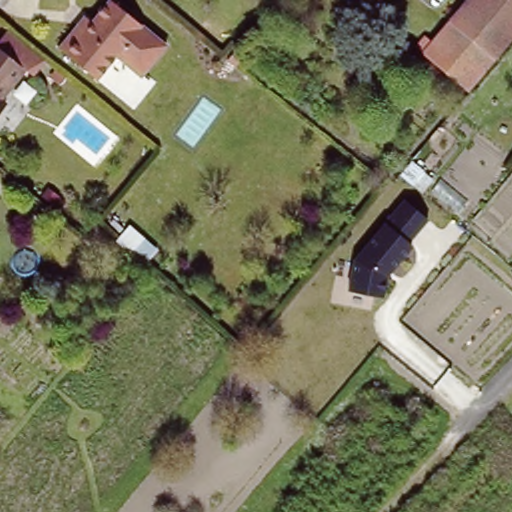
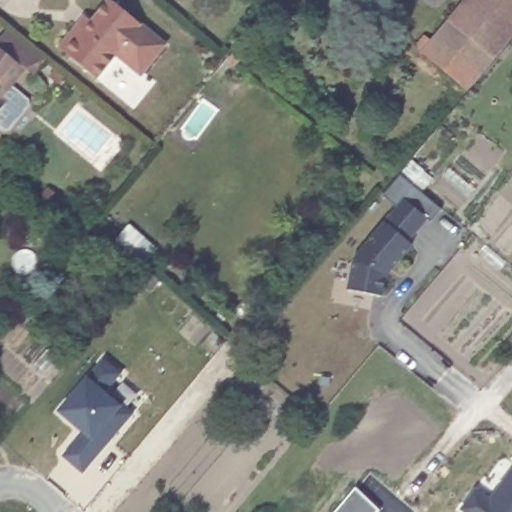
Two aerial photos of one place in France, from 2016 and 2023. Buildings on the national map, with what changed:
unchanged [(130,64),(117,54),(98,75),(60,44),(80,20),(87,12),(94,19),(110,0),(117,0),(123,5),(168,42),(142,74),(130,64)]
unchanged [(492,65),(447,25),(452,19),(468,0),(512,0),(512,40),(496,59),(492,65)]
unchanged [(492,65),(465,95),(412,52),(420,44),(427,49),(447,25),(492,65)]
unchanged [(40,60),(27,76),(20,70),(0,54),(0,34),(4,30),(39,59),(40,60)]
unchanged [(0,54),(20,70),(17,75),(0,96),(0,54)]
unchanged [(0,108),(0,103),(2,105),(0,108)]
unchanged [(431,217),(412,241),(414,244),(383,281),(383,293),(349,288),(352,260),(404,199),(431,217)]
new [(145,275),(157,284),(149,293),(137,283),(145,275)]
new [(114,391),(127,403),(126,405),(137,414),(85,473),(65,457),(83,437),(57,415),(60,411),(56,408),(87,371),(90,373),(92,371),(95,375),(105,358),(125,373),(114,391)]
new [(460,510),(475,488),(490,498),(512,467),(512,512),(462,512),(460,510)]

